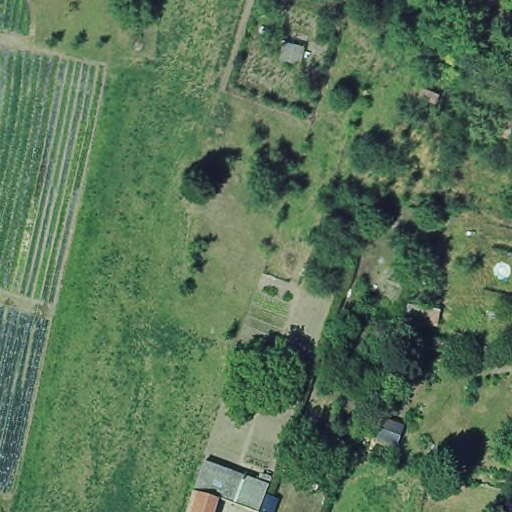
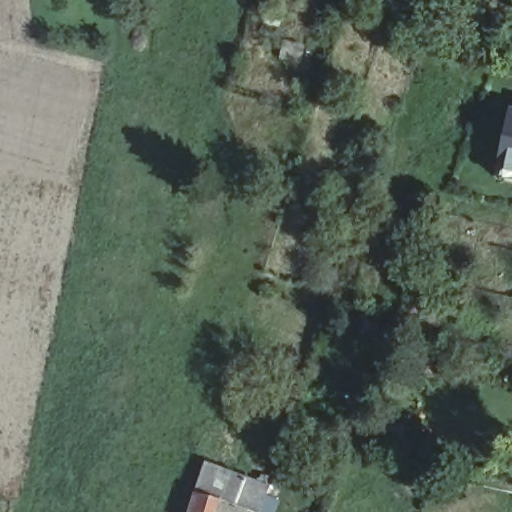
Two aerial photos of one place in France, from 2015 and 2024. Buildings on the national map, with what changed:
new [(496,169),(510,108),(512,108),(512,173),(496,169)]
unchanged [(446,312),(442,331),(419,327),(423,308),(446,312)]
unchanged [(189,494),(191,486),(198,464),(223,474),(237,479),(264,489),(256,512),(242,512),(227,507),(214,502),(205,498),(205,499),(200,512),(183,512),(189,494)]

